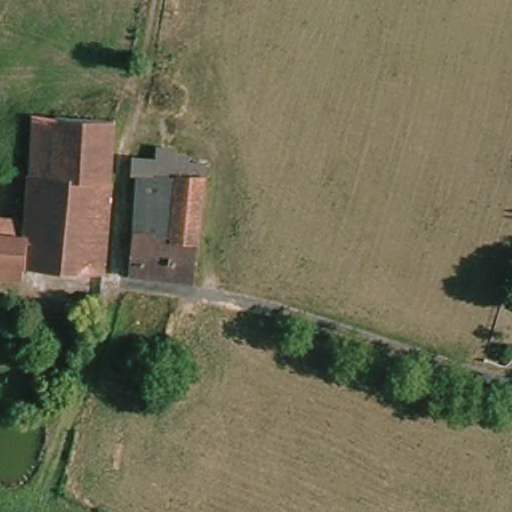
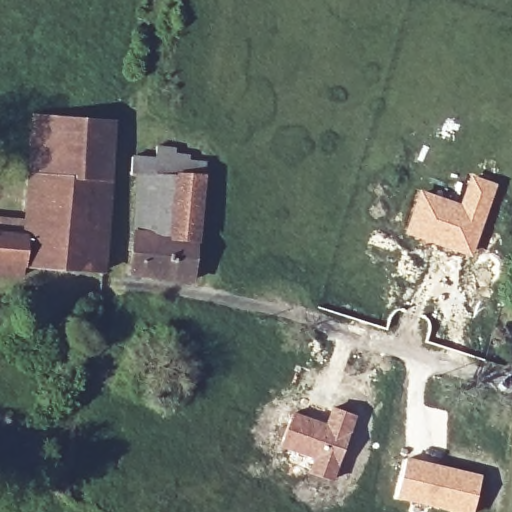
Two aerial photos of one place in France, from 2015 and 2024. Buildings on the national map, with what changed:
unchanged [(58,115),(119,118),(114,178),(54,174),(58,115)]
unchanged [(199,278),(140,273),(148,175),(156,176),(160,145),(183,147),(184,151),(197,154),(196,159),(210,160),(199,278)]
unchanged [(0,234),(4,234),(5,219),(31,221),(34,172),(54,174),(114,178),(106,270),(24,267),(24,283),(0,282),(0,234)]
new [(418,188),(459,201),(471,172),(498,182),(472,257),(403,233),(418,188)]
new [(294,411),(325,422),(332,406),(357,415),(333,481),(307,471),(312,459),(280,446),(294,411)]
new [(482,474),(473,512),(457,512),(395,498),(406,456),(482,474)]

